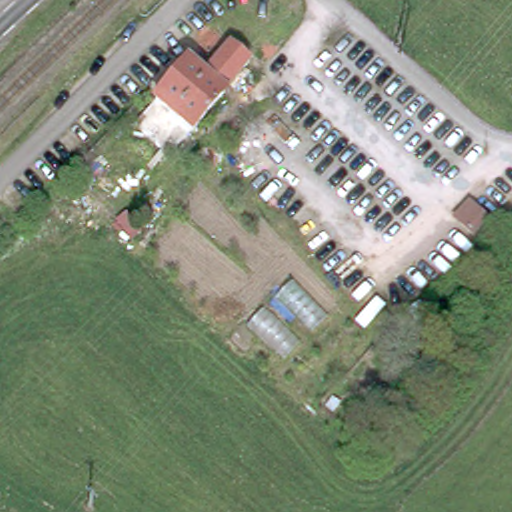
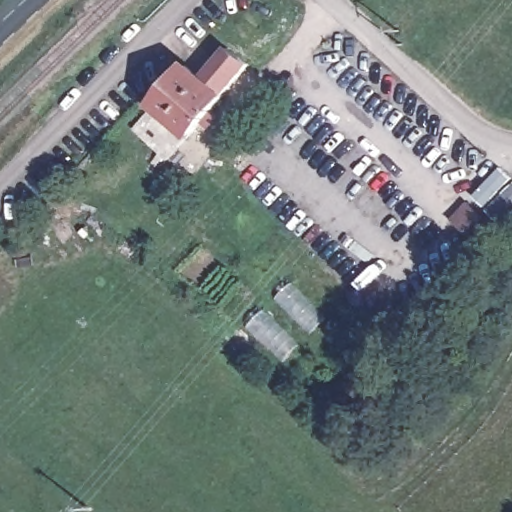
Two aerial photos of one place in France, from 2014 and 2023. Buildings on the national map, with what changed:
unchanged [(249,60),(190,129),(155,100),(188,61),(205,74),(230,44),(249,60)]

